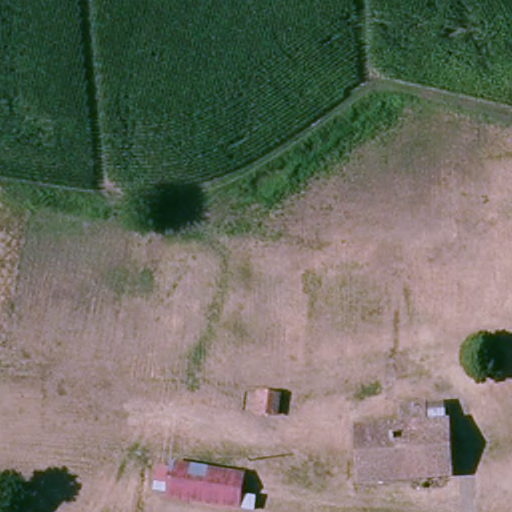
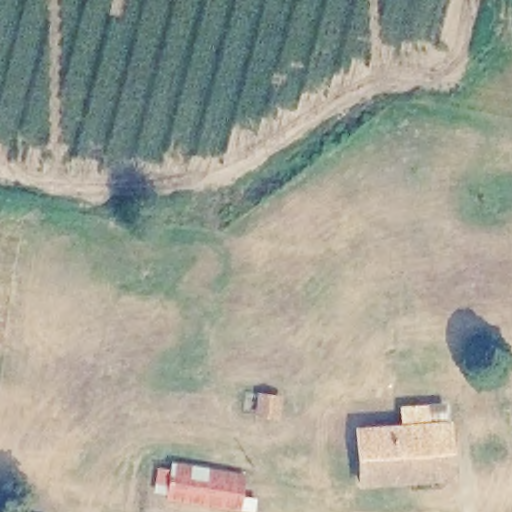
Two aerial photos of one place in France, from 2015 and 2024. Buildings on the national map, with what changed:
unchanged [(455,427),(421,432),(416,395),(452,389),(455,427)]
unchanged [(367,493),(357,442),(399,434),(392,399),(416,395),(421,432),(455,427),(458,478),(385,489),(367,493)]
unchanged [(243,400),(261,402),(259,429),(241,428),(243,400)]
unchanged [(245,504),(179,496),(183,462),(251,476),(245,504)]

